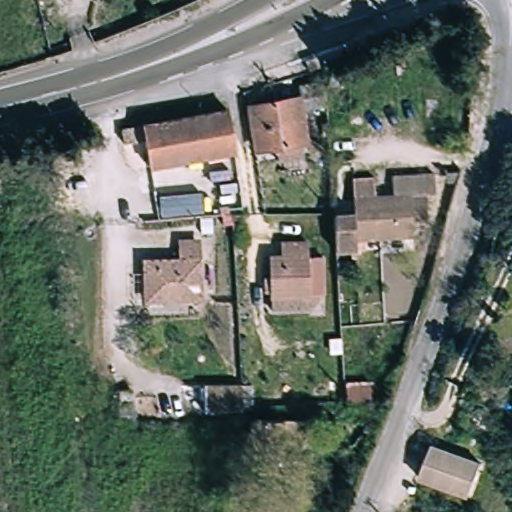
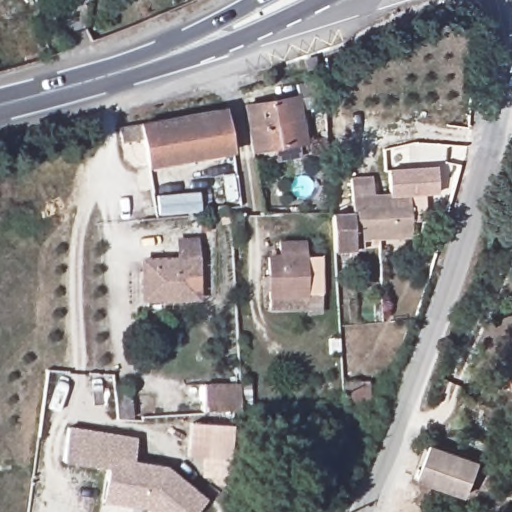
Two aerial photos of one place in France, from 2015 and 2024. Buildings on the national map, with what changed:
unchanged [(299,87),(326,81),(326,110),(304,113),(306,138),(251,146),(248,105),(299,96),(299,87)]
unchanged [(231,110),(236,149),(188,157),(148,164),(146,146),(121,148),(118,128),(231,110)]
unchanged [(360,240),(361,252),(333,254),(331,212),(331,211),(353,209),(351,196),(349,175),(371,174),(373,192),(392,190),(390,172),(428,168),(430,187),(403,190),(408,236),(360,240)]
unchanged [(201,245),(203,297),(146,298),(147,260),(183,259),(186,244),(201,245)]
unchanged [(311,244),(311,292),(271,292),(271,260),(282,261),(283,245),(311,244)]
unchanged [(209,413),(208,388),(237,388),(238,411),(209,413)]
demolished [(308,425),(308,444),(274,444),(273,452),(264,453),(264,482),(251,481),(254,421),(308,425)]
new [(231,460),(189,456),(191,423),(233,426),(231,460)]
new [(197,512),(151,512),(145,507),(103,502),(107,468),(65,461),(68,427),(137,438),(134,461),(166,467),(208,500),(197,512)]
unchanged [(420,476),(433,445),(479,465),(467,497),(420,476)]

